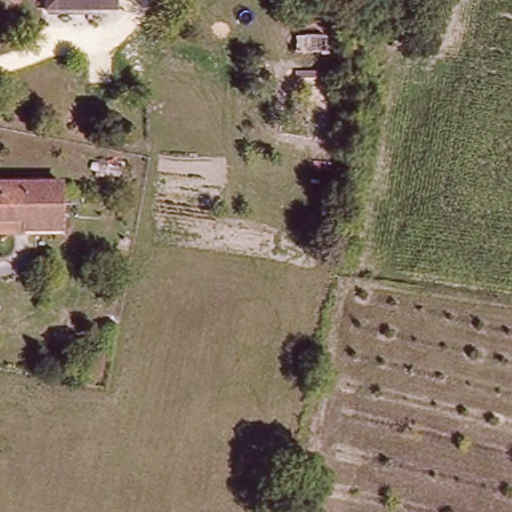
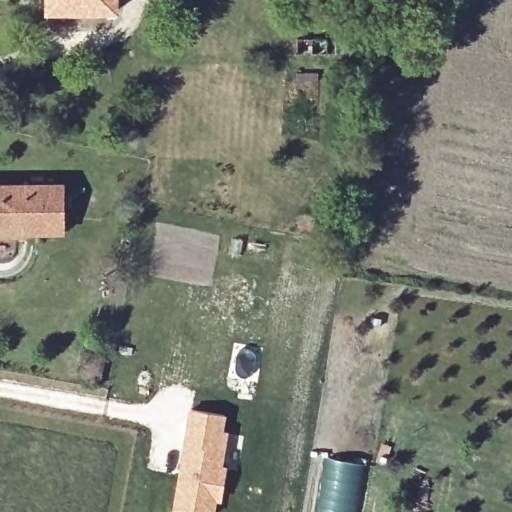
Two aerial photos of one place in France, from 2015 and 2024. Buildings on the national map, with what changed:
unchanged [(111,17),(48,14),(48,0),(111,0),(111,17)]
unchanged [(30,226),(0,226),(0,189),(64,189),(63,236),(29,236),(30,226)]
new [(227,413),(225,430),(230,431),(224,464),(228,465),(222,502),(218,501),(216,512),(190,512),(171,508),(188,406),(227,413)]
new [(362,463),(353,512),(320,512),(327,457),(362,463)]

